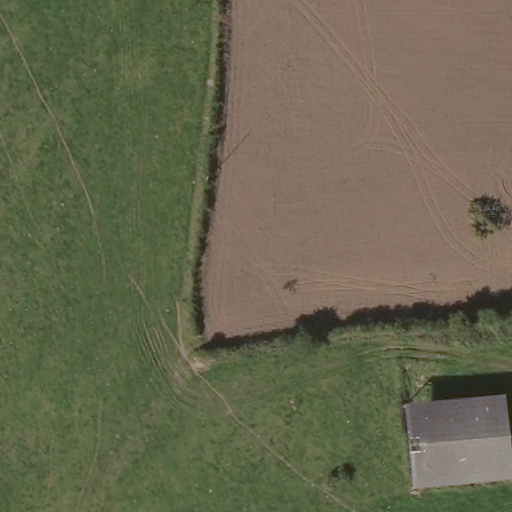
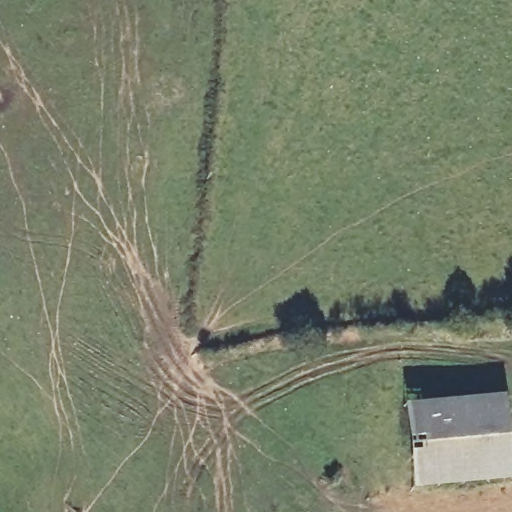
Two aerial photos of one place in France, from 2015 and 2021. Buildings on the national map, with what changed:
unchanged [(403,497),(395,417),(499,410),(507,490),(403,497)]

